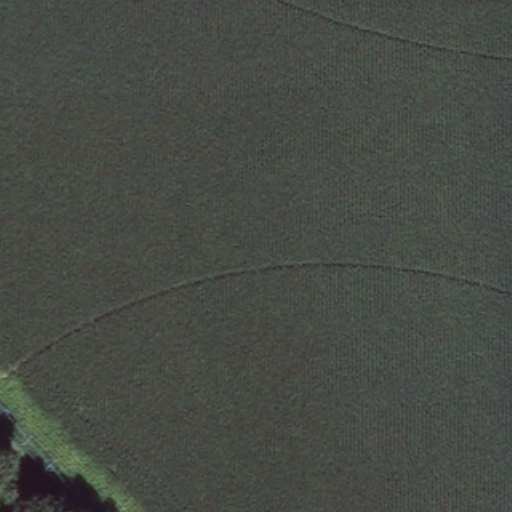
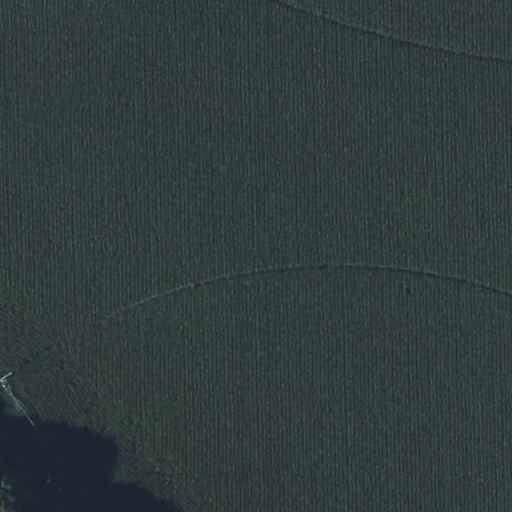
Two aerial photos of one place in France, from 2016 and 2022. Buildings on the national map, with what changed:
[]

